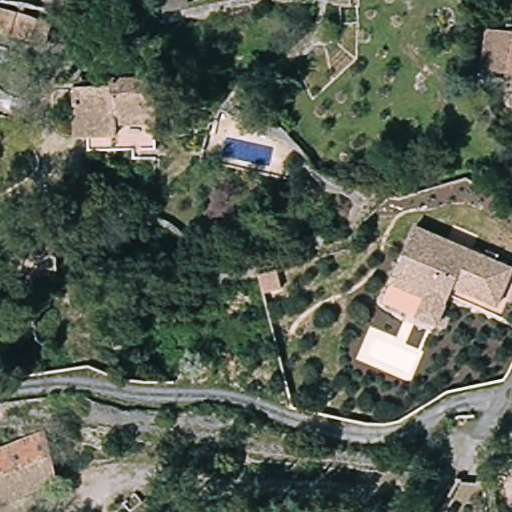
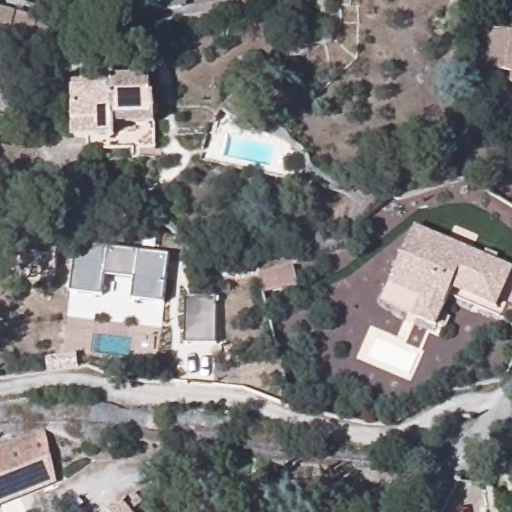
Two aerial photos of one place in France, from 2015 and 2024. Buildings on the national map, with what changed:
unchanged [(169,0),(195,0),(198,15),(174,20),(169,0)]
unchanged [(42,48),(31,44),(0,34),(0,5),(40,19),(53,24),(42,48)]
unchanged [(487,31),(512,35),(512,74),(483,70),(487,31)]
unchanged [(149,110),(154,112),(137,160),(72,135),(76,124),(58,116),(76,71),(77,72),(81,62),(118,76),(156,90),(149,110)]
unchanged [(495,307),(451,288),(435,325),(413,316),(421,299),(388,285),(415,223),(512,264),(512,268),(495,307)]
unchanged [(44,242),(45,265),(10,265),(11,245),(44,242)]
new [(165,305),(133,300),(136,280),(106,276),(103,297),(72,293),(78,244),(171,255),(165,305)]
new [(294,265),(299,285),(264,294),(260,274),(294,265)]
new [(186,344),(186,297),(217,296),(217,344),(186,344)]
unchanged [(0,500),(0,449),(42,433),(52,480),(0,500)]

